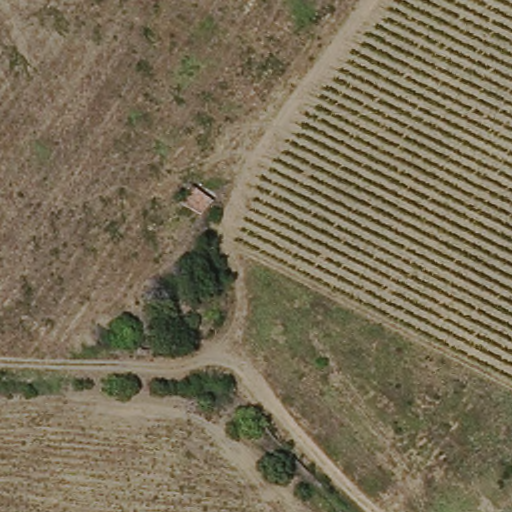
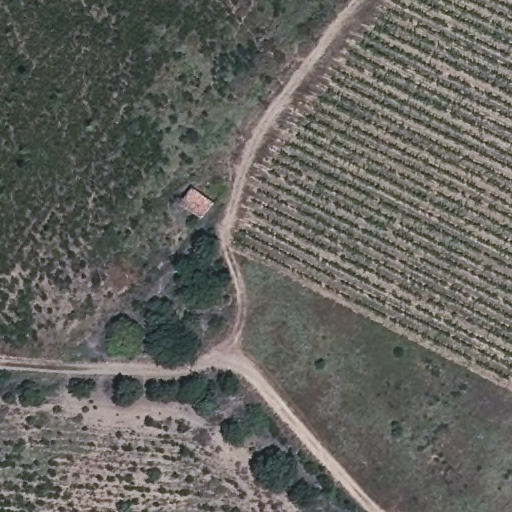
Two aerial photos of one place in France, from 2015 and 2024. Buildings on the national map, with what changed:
unchanged [(184,199),(194,184),(218,198),(207,214),(184,199)]

